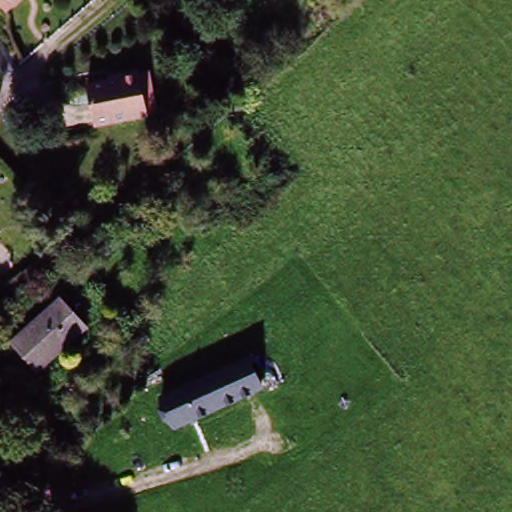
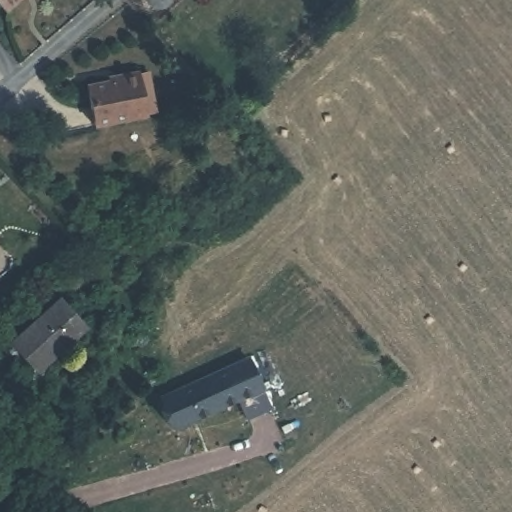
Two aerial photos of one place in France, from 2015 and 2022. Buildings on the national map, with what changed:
unchanged [(7,12),(0,5),(0,0),(18,0),(7,12)]
unchanged [(115,82),(132,80),(143,121),(93,133),(84,94),(117,85),(115,82)]
unchanged [(87,332),(36,375),(11,346),(62,302),(87,332)]
unchanged [(262,392),(173,431),(159,396),(247,358),(262,392)]

